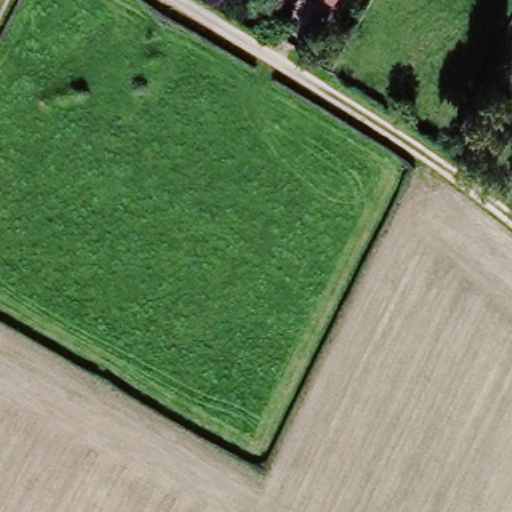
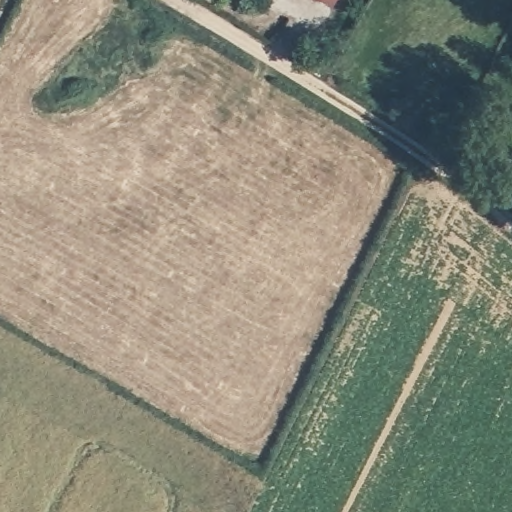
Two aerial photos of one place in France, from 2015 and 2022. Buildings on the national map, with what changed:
unchanged [(335,5),(325,0),(337,0),(335,5)]

